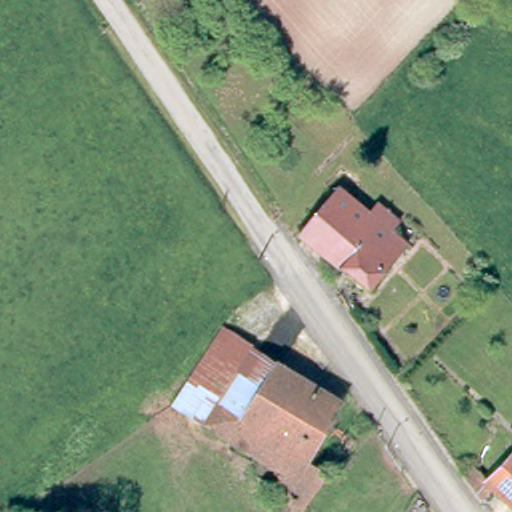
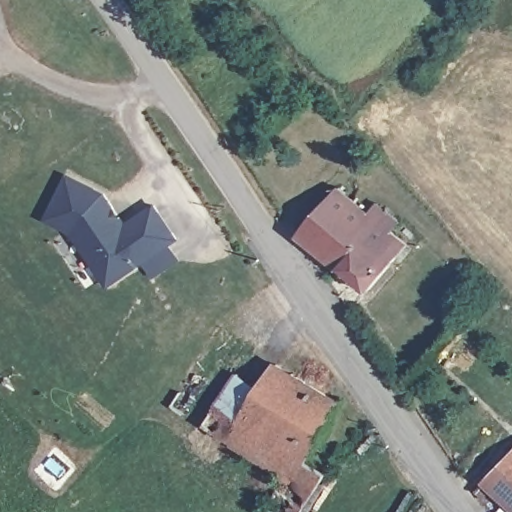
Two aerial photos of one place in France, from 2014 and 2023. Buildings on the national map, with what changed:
new [(107,189),(127,222),(155,203),(179,238),(108,286),(71,233),(44,219),(66,172),(107,189)]
unchanged [(338,186),(369,212),(377,202),(400,222),(393,231),(408,244),(367,293),(297,235),(338,186)]
unchanged [(277,363),(261,388),(237,372),(202,426),(172,407),(222,328),(277,363)]
unchanged [(307,461),(327,474),(303,512),(273,512),(266,507),(276,491),(253,477),(262,463),(202,426),(237,372),(261,388),(277,363),(341,404),(307,461)]
unchanged [(489,479),(512,453),(512,502),(489,479)]
unchanged [(489,479),(475,495),(460,474),(473,464),(489,479)]

